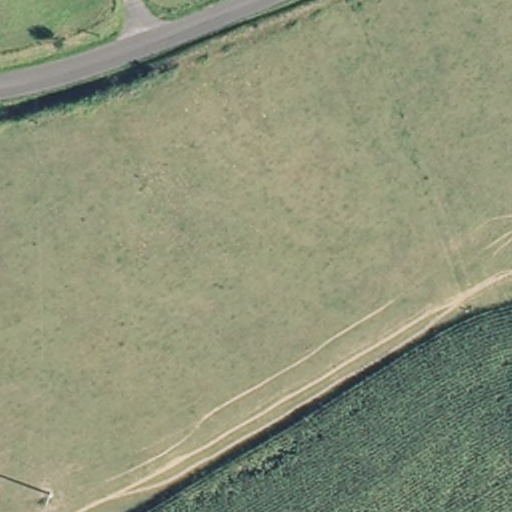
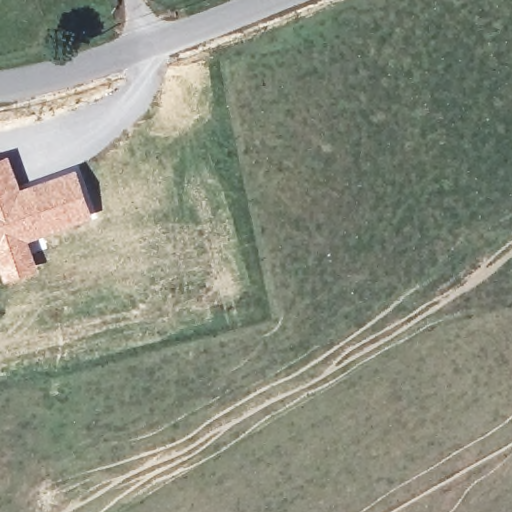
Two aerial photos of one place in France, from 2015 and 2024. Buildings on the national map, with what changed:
new [(21,186),(77,166),(95,214),(29,239),(39,265),(5,278),(0,264),(0,157),(8,153),(21,186)]

